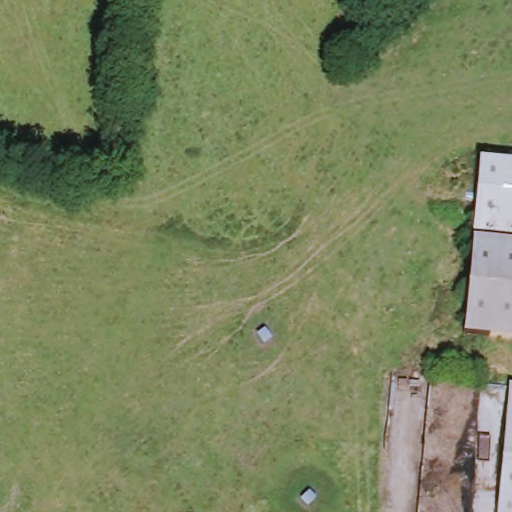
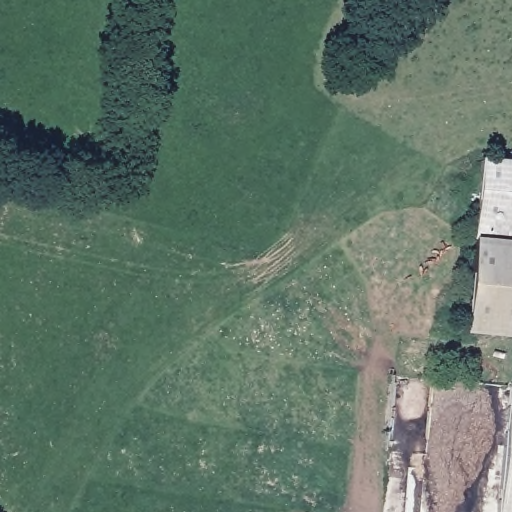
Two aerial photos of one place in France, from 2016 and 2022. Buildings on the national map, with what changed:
unchanged [(512,340),(467,336),(482,164),(512,166),(512,340)]
unchanged [(512,512),(504,512),(512,437),(512,512)]

